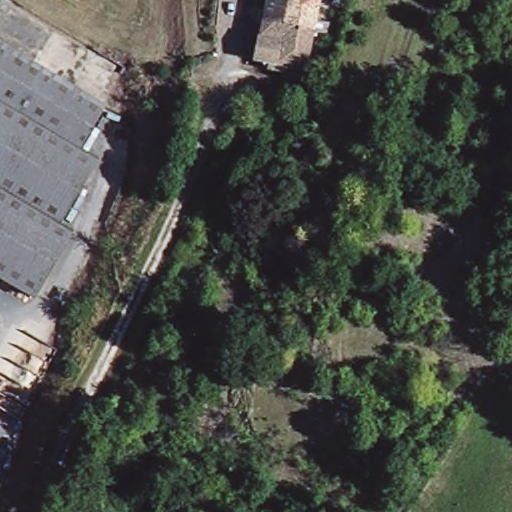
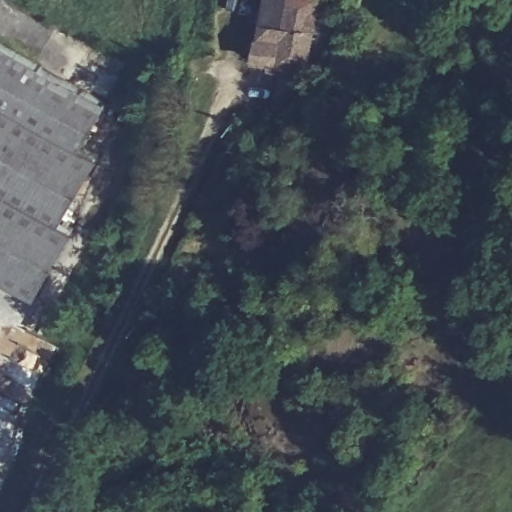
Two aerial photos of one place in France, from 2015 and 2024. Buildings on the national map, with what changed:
unchanged [(252,37),(261,0),(284,0),(279,25),(274,42),(252,37)]
unchanged [(323,24),(321,35),(311,33),(279,25),(284,0),(316,0),(310,20),(323,24)]
unchanged [(343,10),(333,4),(335,0),(357,0),(350,14),(343,10)]
unchanged [(301,72),(245,60),(252,37),(274,42),(279,25),(311,33),(301,72)]
unchanged [(94,155),(56,221),(69,229),(31,294),(0,276),(0,39),(103,97),(76,144),(94,155)]
unchanged [(362,95),(350,150),(318,143),(330,87),(362,95)]

